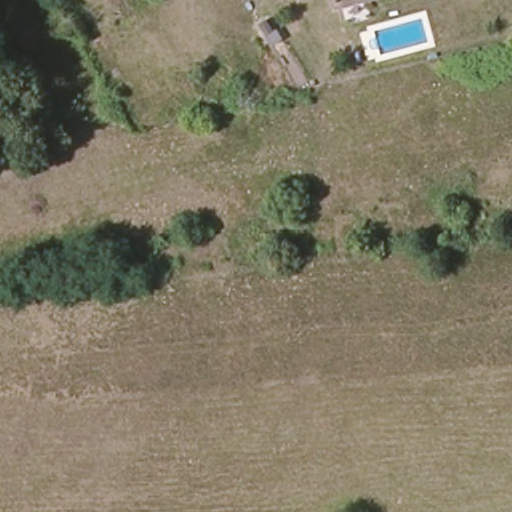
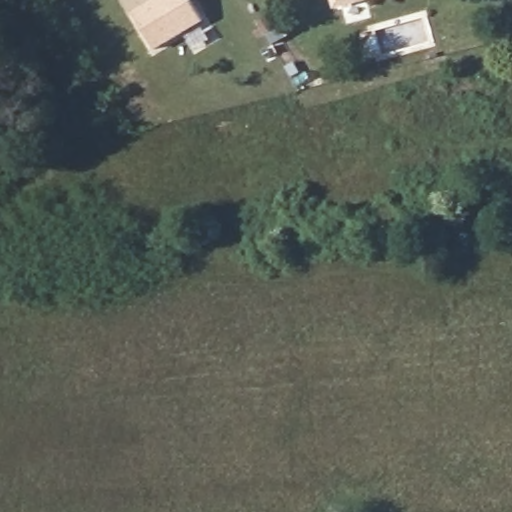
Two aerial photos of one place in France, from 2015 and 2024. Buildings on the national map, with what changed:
new [(134,14),(157,0),(192,0),(204,23),(156,51),(134,14)]
unchanged [(343,0),(369,0),(345,6),(343,0)]

